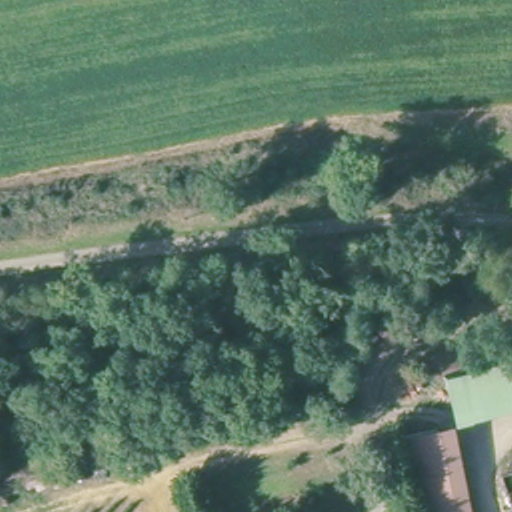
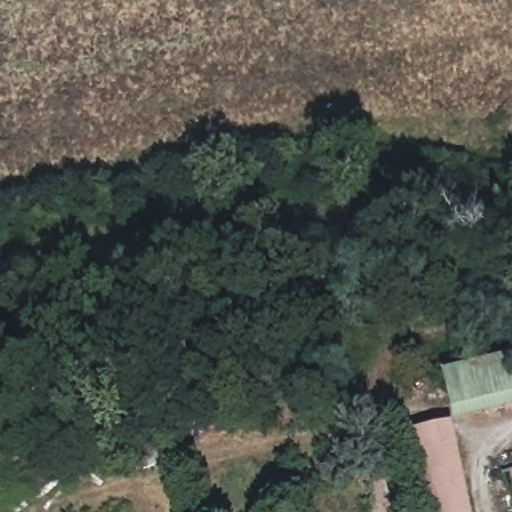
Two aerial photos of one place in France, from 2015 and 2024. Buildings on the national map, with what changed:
unchanged [(512,355),(512,409),(457,422),(446,369),(512,355)]
unchanged [(443,425),(468,512),(417,512),(397,437),(443,425)]

